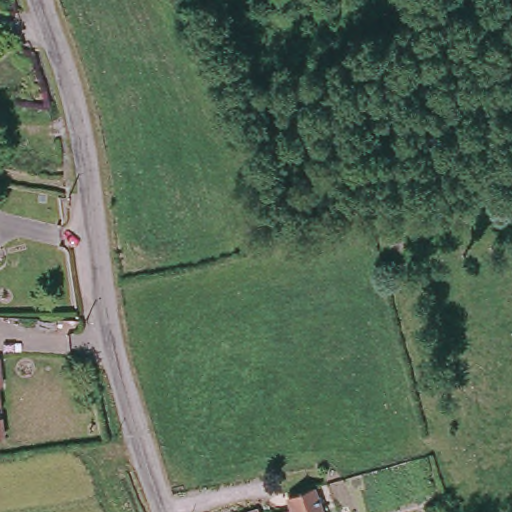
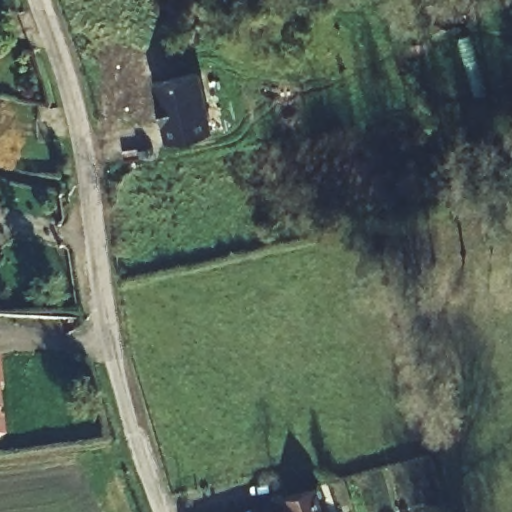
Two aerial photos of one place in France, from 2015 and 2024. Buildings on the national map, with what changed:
new [(154,81),(198,71),(211,131),(167,141),(154,81)]
unchanged [(1,385),(0,385),(0,381),(1,385)]
unchanged [(288,500),(307,493),(311,491),(316,503),(319,512),(291,512),(293,511),(288,500)]
unchanged [(257,512),(255,512),(257,511),(257,512)]

